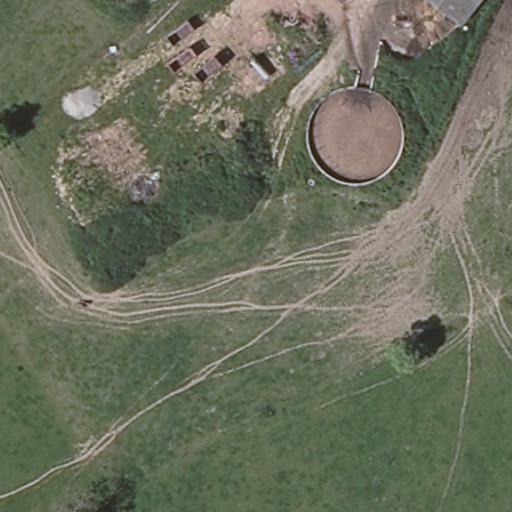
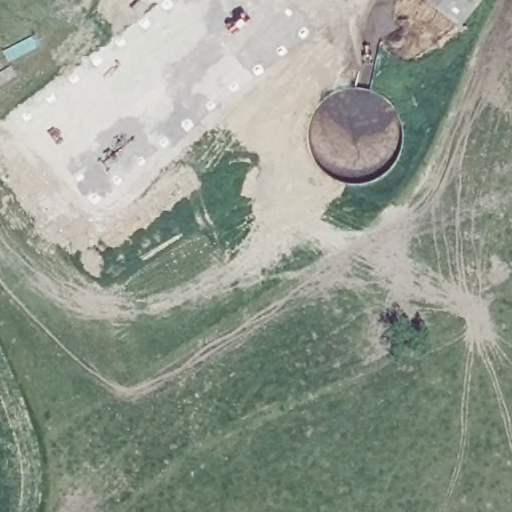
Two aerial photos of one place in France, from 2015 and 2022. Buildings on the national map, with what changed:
unchanged [(461,16),(442,0),(474,0),(461,16)]

